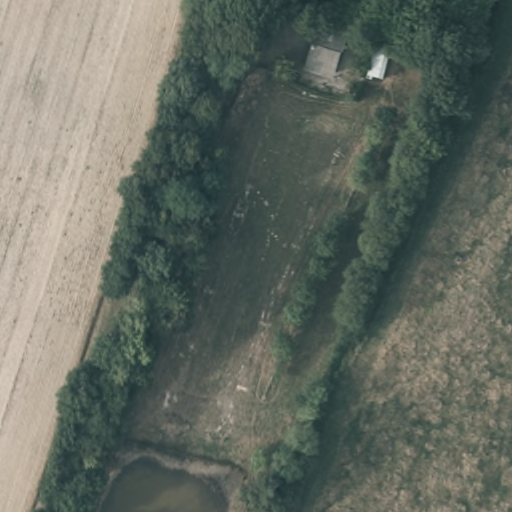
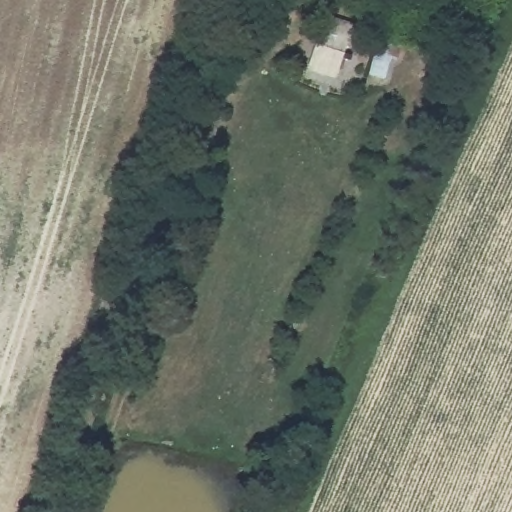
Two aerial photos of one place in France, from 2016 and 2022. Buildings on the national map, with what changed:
unchanged [(308,67),(325,12),(355,22),(338,76),(308,67)]

